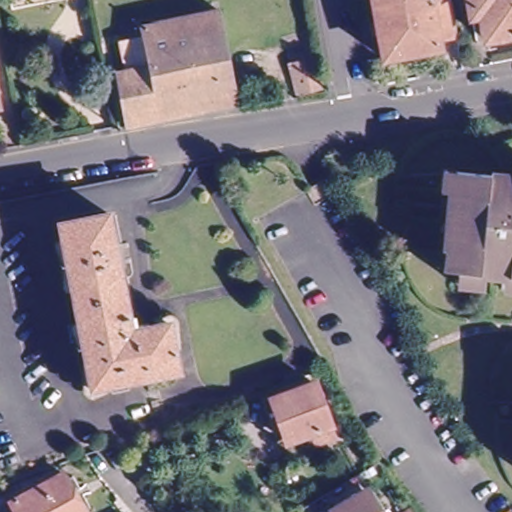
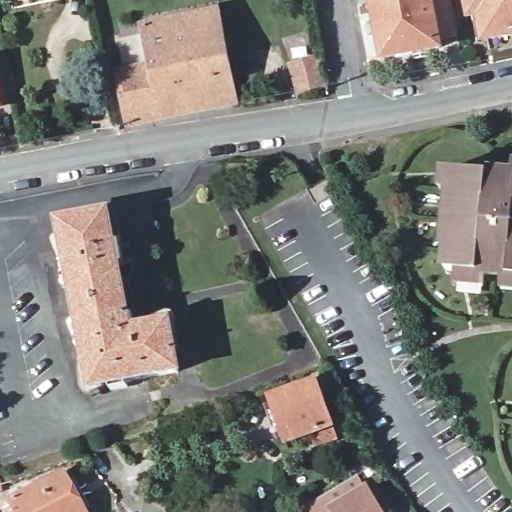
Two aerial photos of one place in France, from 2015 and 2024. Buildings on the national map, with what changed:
unchanged [(423,2),(417,3),(425,47),(427,54),(373,65),(361,0),(423,0),(423,2)]
unchanged [(417,3),(423,2),(423,0),(439,0),(448,42),(425,47),(417,3)]
unchanged [(483,41),(479,16),(469,18),(466,0),(512,0),(512,36),(483,41)]
unchanged [(129,69),(124,42),(144,38),(143,29),(161,25),(158,13),(174,10),(176,22),(218,14),(236,107),(131,128),(120,71),(129,69)]
unchanged [(299,91),(291,73),(316,66),(321,86),(299,91)]
unchanged [(484,275),(482,287),(455,285),(457,273),(445,272),(447,250),(441,249),(446,192),(441,192),(443,171),(454,172),(512,177),(512,290),(502,289),(503,277),(484,275)]
unchanged [(92,394),(56,229),(108,218),(132,333),(168,325),(179,375),(92,394)]
unchanged [(271,424),(265,404),(275,401),(273,396),(315,382),(333,436),(317,441),(313,431),(288,440),(287,436),(277,440),(271,424)]
unchanged [(10,503),(9,501),(60,474),(80,512),(6,512),(3,507),(10,503)]
unchanged [(380,512),(342,512),(371,495),(380,512)]
unchanged [(415,512),(404,512),(411,506),(415,512)]

